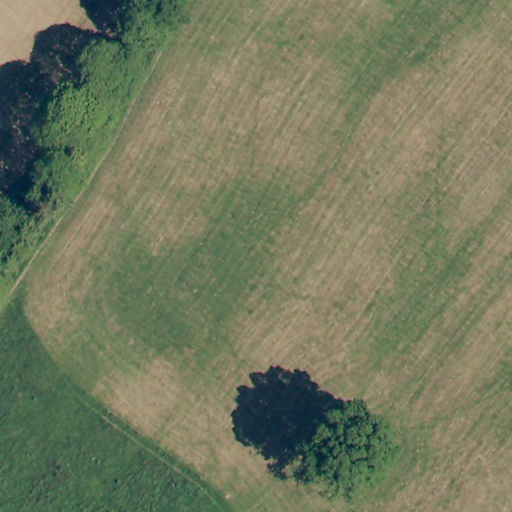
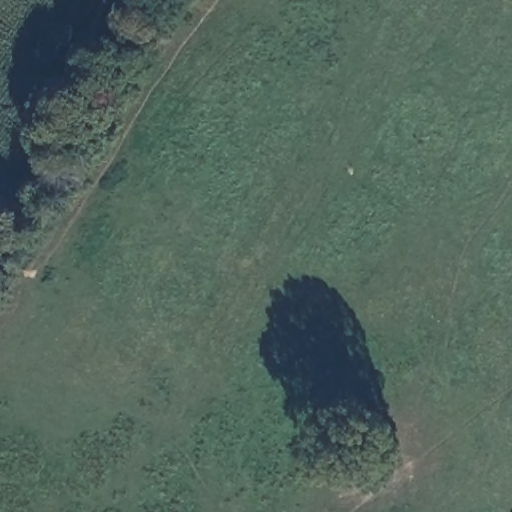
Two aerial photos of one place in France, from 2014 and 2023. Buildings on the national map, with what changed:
[]

